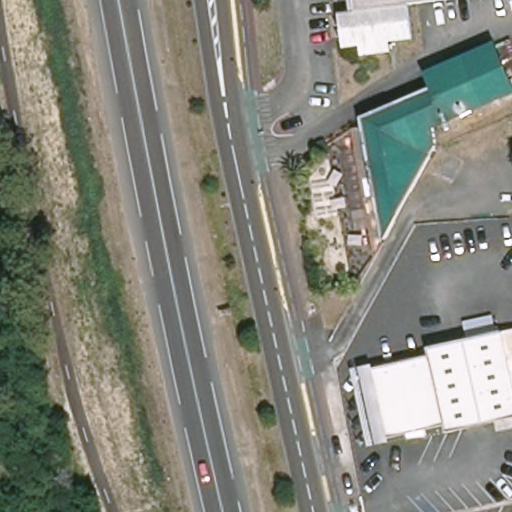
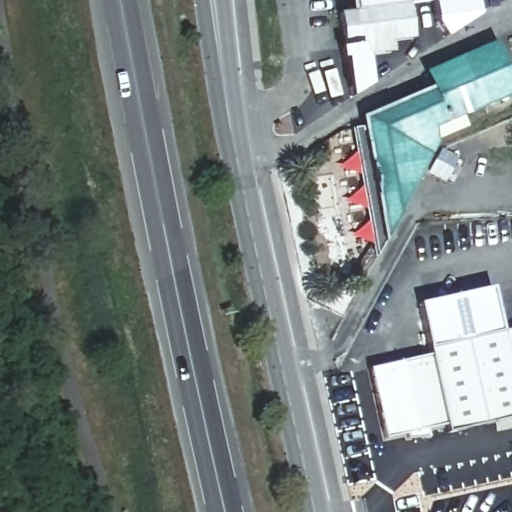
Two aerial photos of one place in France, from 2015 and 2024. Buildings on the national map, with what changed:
unchanged [(409,4),(397,6),(350,12),(349,0),(442,0),(427,2),(409,4)]
unchanged [(342,37),(338,14),(350,12),(397,6),(409,4),(413,40),(391,42),(392,53),(361,57),(359,47),(343,49),(342,37)]
unchanged [(357,158),(366,156),(360,118),(430,89),(423,73),(495,42),(512,81),(512,96),(434,129),(437,146),(434,150),(382,245),(375,258),(357,158)]
new [(428,349),(418,304),(492,287),(501,332),(428,349)]
new [(508,362),(502,332),(512,330),(512,361),(508,362)]
unchanged [(360,372),(370,370),(430,356),(428,349),(502,332),(508,362),(512,361),(512,418),(447,433),(445,426),(427,430),(429,437),(408,442),(407,437),(386,442),(376,444),(360,372)]

